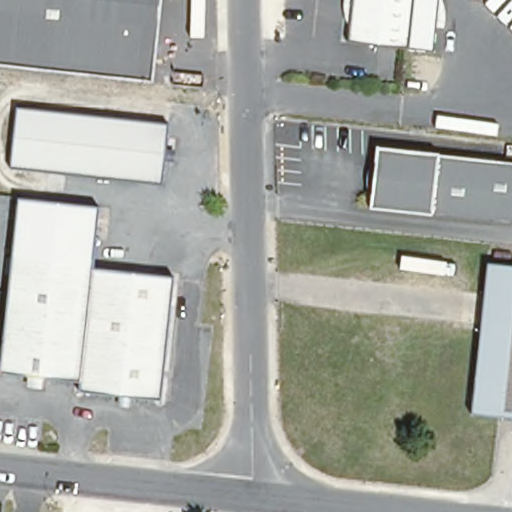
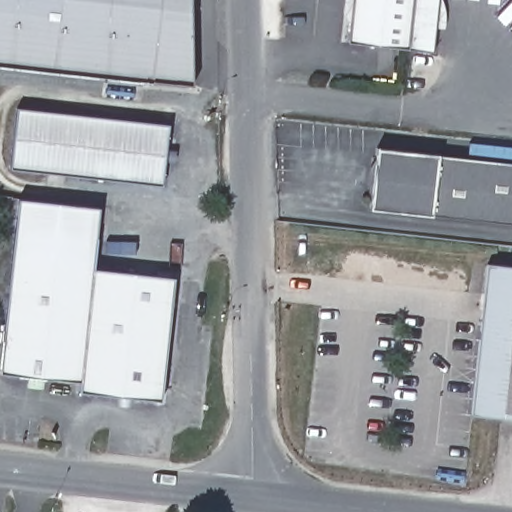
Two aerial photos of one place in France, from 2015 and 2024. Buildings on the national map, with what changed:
unchanged [(142,82),(0,67),(0,0),(151,0),(142,82)]
new [(142,82),(151,0),(192,0),(192,84),(142,82)]
unchanged [(351,0),(437,0),(435,31),(350,23),(351,0)]
unchanged [(435,31),(433,48),(348,40),(350,23),(435,31)]
unchanged [(175,125),(169,185),(17,169),(24,110),(175,125)]
unchanged [(512,223),(371,209),(377,149),(512,163),(512,223)]
unchanged [(105,198),(98,270),(180,277),(167,402),(109,396),(80,392),(81,382),(6,372),(10,325),(23,191),(105,198)]
unchanged [(490,264),(512,266),(512,419),(474,415),(490,264)]

